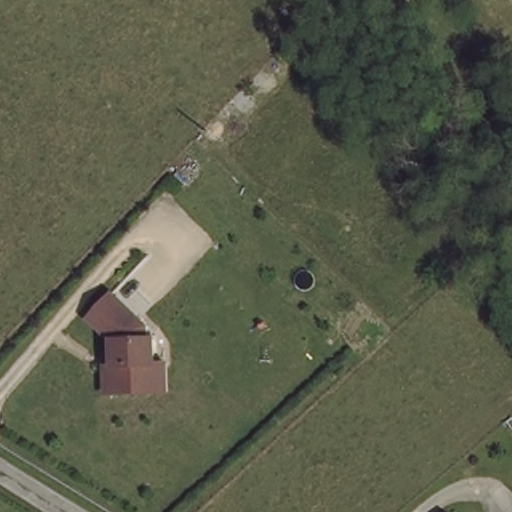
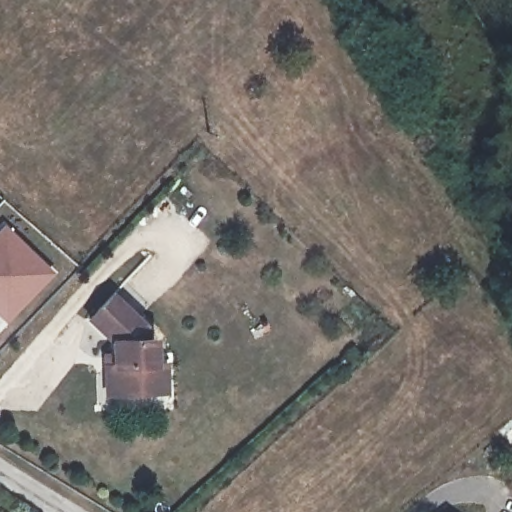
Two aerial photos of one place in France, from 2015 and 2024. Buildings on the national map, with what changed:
new [(0,226),(3,222),(52,272),(4,322),(0,319),(0,226)]
unchanged [(110,391),(110,363),(110,352),(117,352),(117,338),(95,315),(117,292),(150,324),(150,337),(159,337),(159,362),(170,362),(170,390),(153,390),(110,391)]

